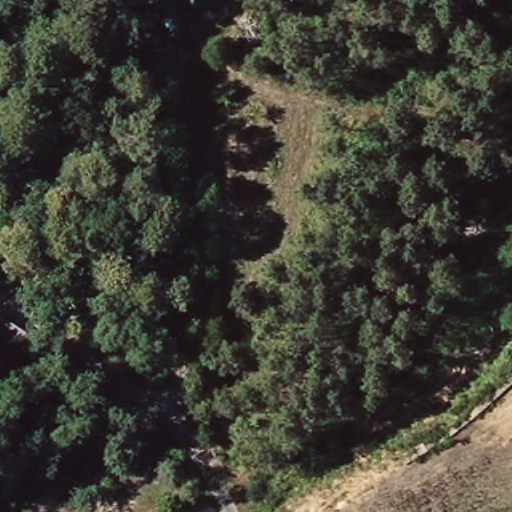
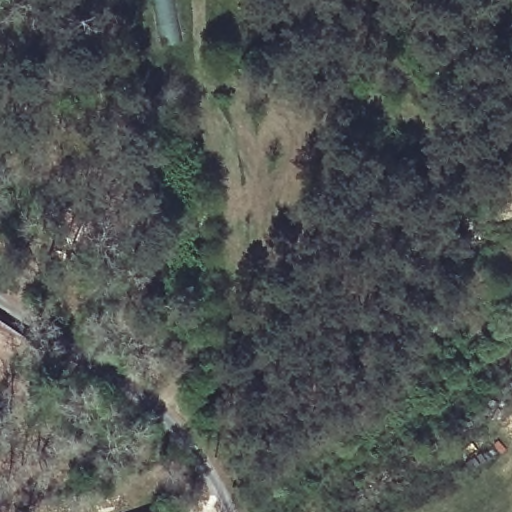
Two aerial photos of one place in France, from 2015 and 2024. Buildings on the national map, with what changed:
unchanged [(155,0),(172,0),(181,47),(164,49),(155,0)]
unchanged [(186,0),(201,0),(204,14),(190,16),(186,0)]
unchanged [(7,395),(0,392),(0,323),(35,345),(7,395)]

